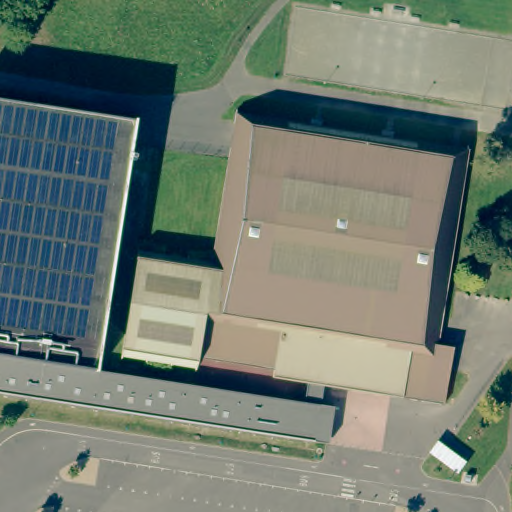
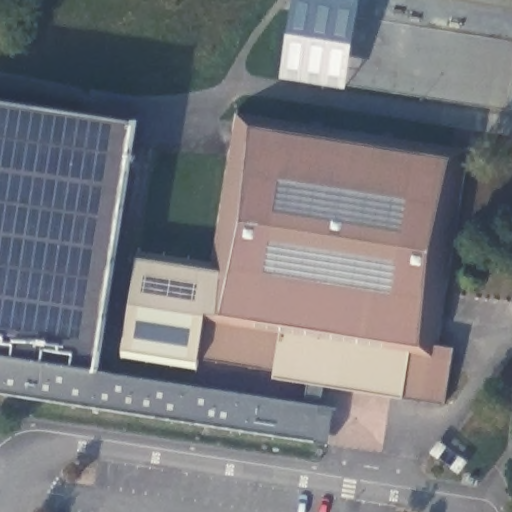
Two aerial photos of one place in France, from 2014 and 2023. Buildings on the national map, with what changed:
new [(280,78),(293,0),(361,0),(346,89),(280,78)]
unchanged [(140,132),(101,368),(305,401),(308,382),(318,384),(323,384),(320,404),(331,406),(325,444),(37,398),(0,391),(0,96),(141,119),(140,132)]
unchanged [(308,382),(274,376),(275,371),(200,358),(198,368),(122,356),(137,257),(212,269),(236,114),(470,151),(439,346),(454,347),(444,404),(323,384),(318,384),(308,382)]

